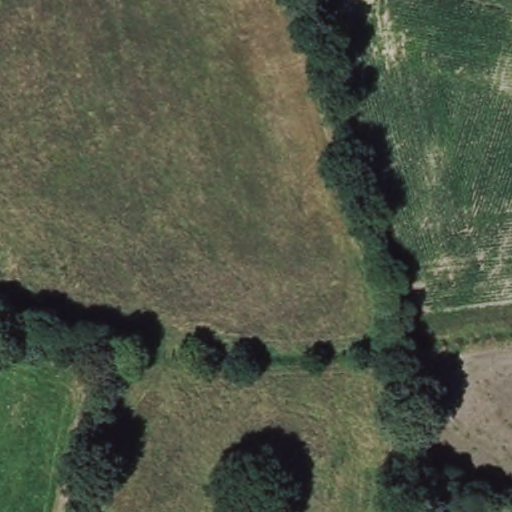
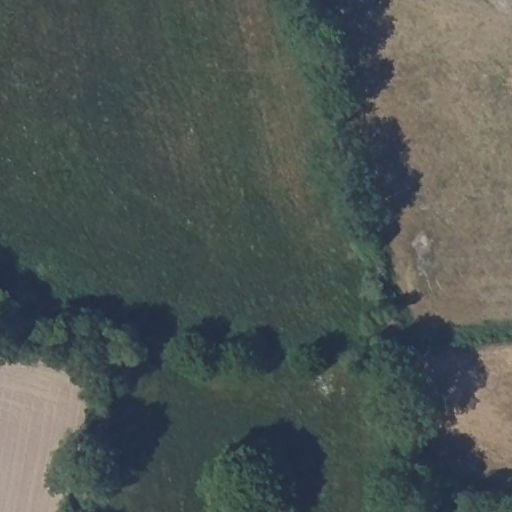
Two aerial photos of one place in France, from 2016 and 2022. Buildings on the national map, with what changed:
[]

